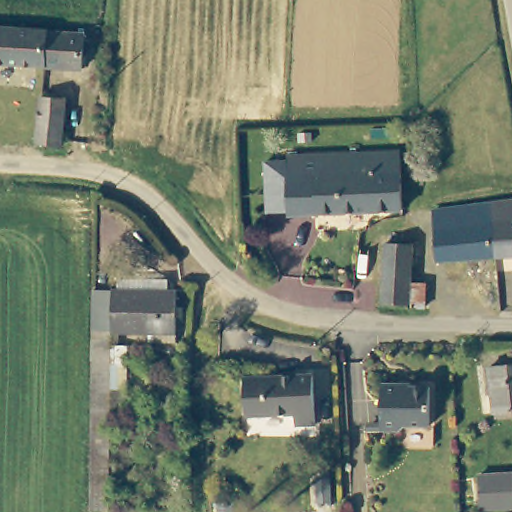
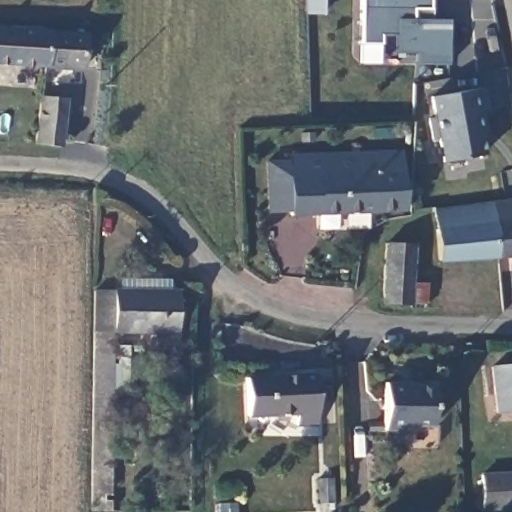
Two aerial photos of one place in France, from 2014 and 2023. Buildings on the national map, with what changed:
new [(428,10),(432,11),(432,20),(448,20),(447,65),(416,65),(417,54),(396,52),(397,36),(380,36),(380,44),(360,44),(361,0),(429,0),(428,10)]
unchanged [(44,67),(0,65),(0,30),(47,33),(44,67)]
unchanged [(82,69),(44,67),(47,33),(85,36),(82,69)]
new [(484,89),(488,112),(483,112),(487,138),(481,139),(484,156),(441,162),(429,97),(484,89)]
unchanged [(37,146),(42,97),(66,100),(62,150),(37,146)]
unchanged [(353,212),(351,156),(410,153),(413,210),(353,212)]
unchanged [(276,162),(298,162),(298,158),(313,157),(321,157),(351,156),(353,212),(300,215),(300,210),(278,211),(276,162)]
unchanged [(490,205),(512,202),(512,256),(496,257),(490,205)]
unchanged [(439,261),(435,212),(490,205),(496,257),(439,261)]
unchanged [(410,305),(383,303),(387,244),(413,246),(412,283),(426,284),(425,310),(410,309),(410,305)]
unchanged [(114,289),(120,290),(120,279),(170,281),(170,294),(178,295),(178,310),(186,311),(186,322),(177,322),(177,346),(154,345),(154,337),(121,335),(121,347),(127,347),(127,367),(112,367),(111,512),(90,512),(94,292),(114,292),(114,289)]
unchanged [(512,367),(512,413),(495,415),(491,368),(512,367)]
unchanged [(318,422),(298,423),(298,412),(251,414),(250,377),(317,373),(318,422)]
unchanged [(432,417),(410,418),(404,423),(385,424),(382,376),(403,375),(403,378),(431,377),(432,417)]
unchanged [(482,477),(512,476),(512,510),(484,512),(482,477)]
unchanged [(315,482),(329,482),(330,505),(316,506),(315,482)]

